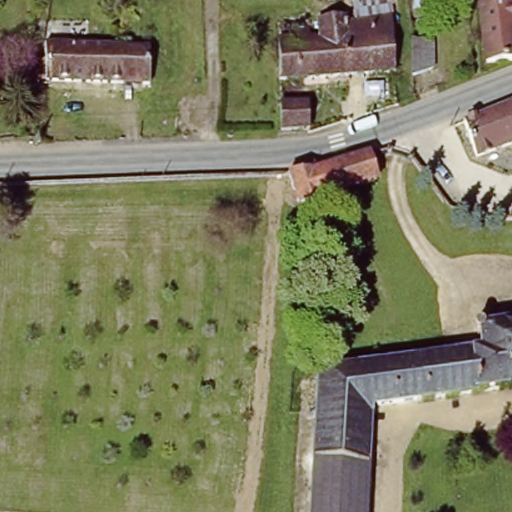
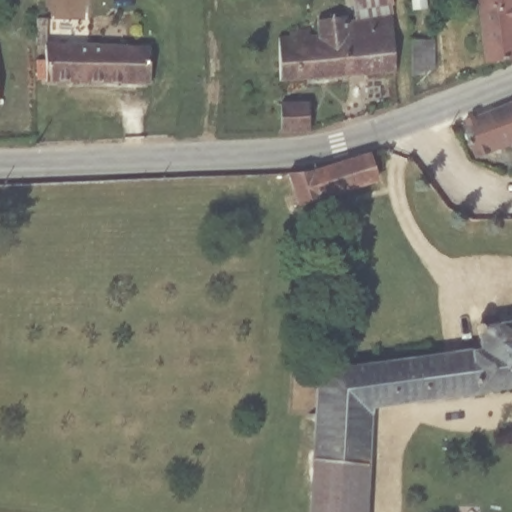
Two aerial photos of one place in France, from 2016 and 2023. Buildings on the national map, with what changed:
unchanged [(275,40),(316,39),(315,17),(348,15),(348,0),(393,0),(395,75),(275,81),(275,40)]
unchanged [(487,58),(485,4),(485,0),(512,0),(512,59),(487,58)]
unchanged [(144,41),(146,76),(45,80),(43,43),(144,41)]
unchanged [(309,100),(310,130),(278,131),(278,100),(309,100)]
unchanged [(512,101),(512,132),(468,148),(459,120),(512,101)]
unchanged [(285,164),(327,162),(372,145),(382,173),(321,195),(323,201),(302,208),(285,164)]
unchanged [(479,346),(477,326),(512,319),(512,388),(373,408),(369,512),(307,512),(315,371),(479,346)]

